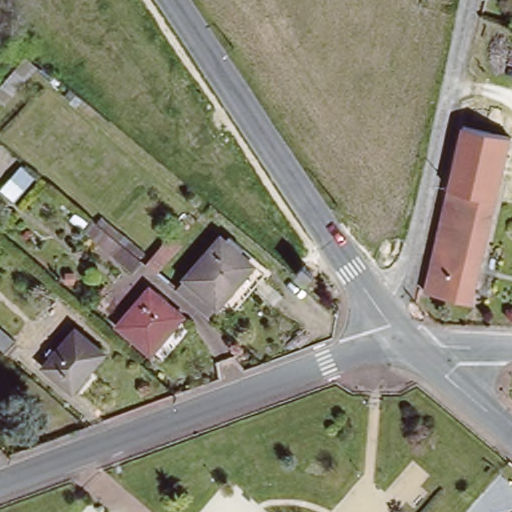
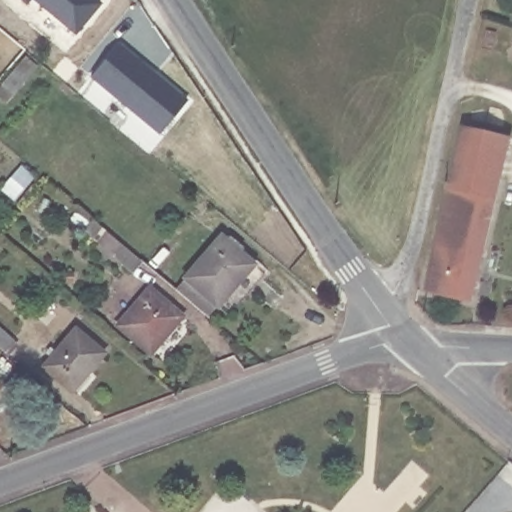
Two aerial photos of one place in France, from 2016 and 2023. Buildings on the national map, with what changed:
new [(23,3),(19,0),(27,0),(23,3)]
new [(98,4),(73,34),(32,0),(93,0),(98,4)]
new [(118,44),(188,101),(160,134),(91,77),(118,44)]
unchanged [(431,299),(472,133),(478,134),(481,123),(512,131),(512,168),(477,310),(431,299)]
unchanged [(135,255),(125,267),(80,230),(91,217),(135,255)]
unchanged [(191,281),(225,240),(259,267),(225,308),(191,281)]
demolished [(284,267),(292,256),(306,266),(296,278),(284,267)]
unchanged [(181,315),(148,352),(118,325),(150,288),(181,315)]
unchanged [(16,343),(8,352),(0,345),(0,329),(16,343)]
unchanged [(104,356),(74,390),(47,365),(78,332),(104,356)]

